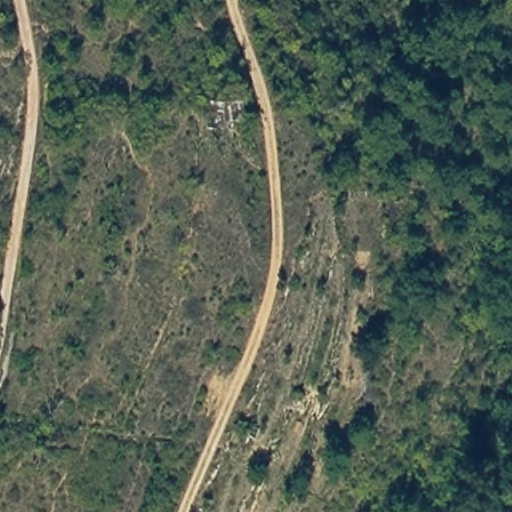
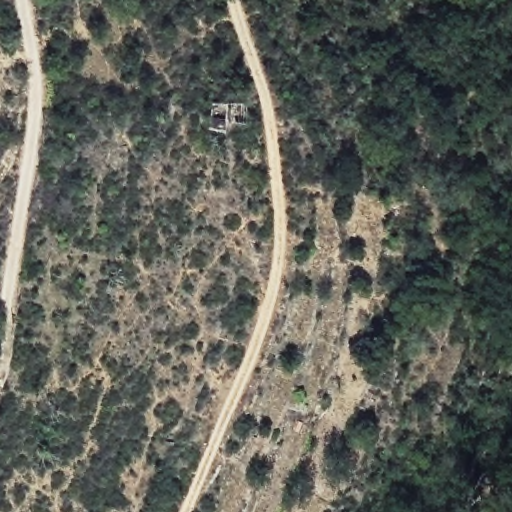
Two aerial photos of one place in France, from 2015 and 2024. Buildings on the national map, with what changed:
unchanged [(214,120),(213,99),(245,98),(244,120),(214,120)]

